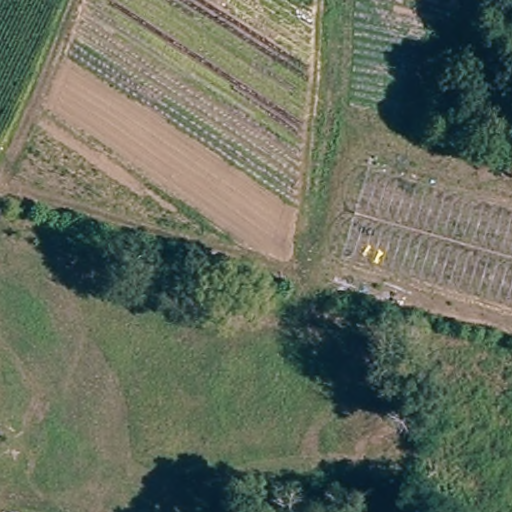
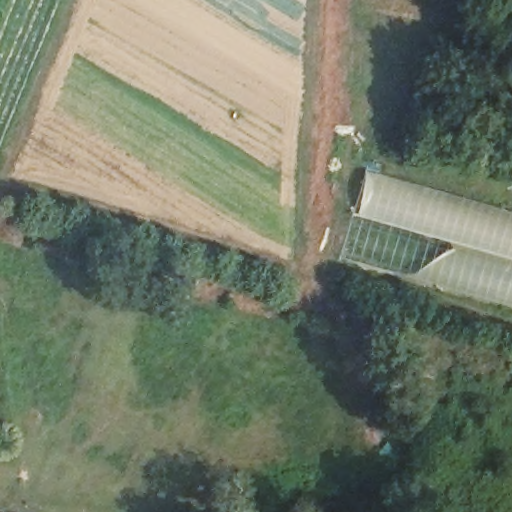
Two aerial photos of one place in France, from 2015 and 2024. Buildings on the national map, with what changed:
new [(368,169),(512,209),(512,309),(341,260),(368,169)]

